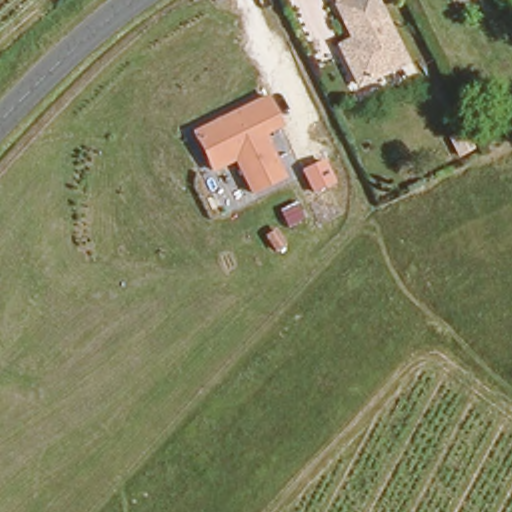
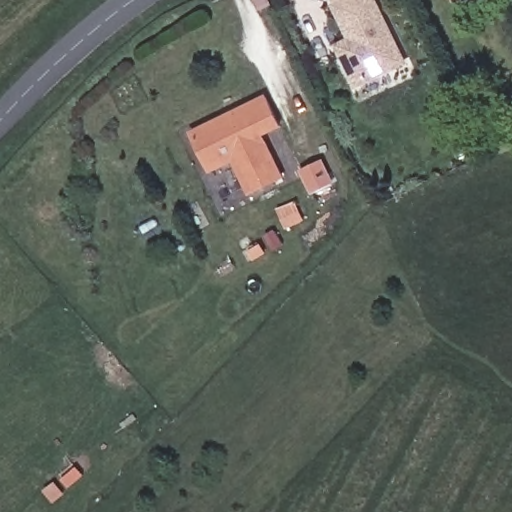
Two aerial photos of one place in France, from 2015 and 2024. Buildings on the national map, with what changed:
unchanged [(330,0),(342,0),(332,5),(330,0)]
unchanged [(355,42),(337,10),(356,0),(371,0),(407,64),(363,90),(345,59),(340,51),(355,42)]
unchanged [(211,173),(191,132),(267,95),(281,129),(264,135),(285,178),(250,195),(233,163),(211,173)]

